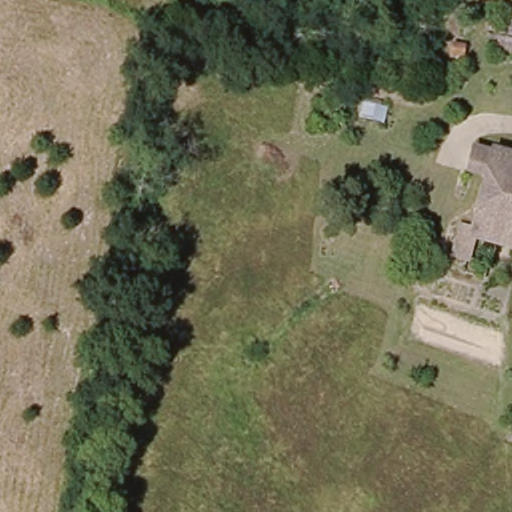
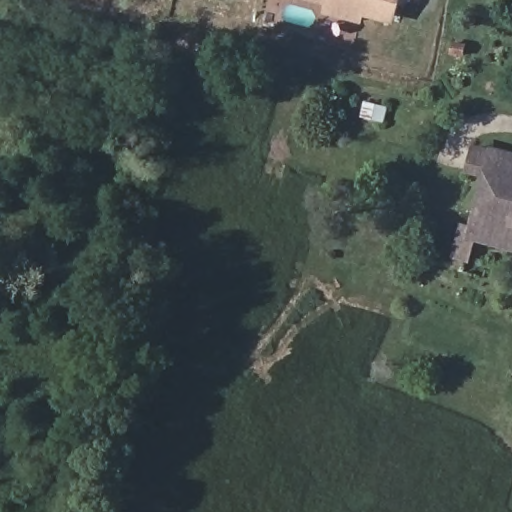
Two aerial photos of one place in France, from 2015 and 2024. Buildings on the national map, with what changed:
new [(361,23),(322,13),(324,4),(309,0),(399,0),(394,23),(363,15),(361,23)]
unchanged [(490,233),(485,240),(499,249),(493,274),(454,263),(464,221),(474,223),(481,194),(487,169),(469,164),(474,142),(493,147),(512,152),(512,239),(490,233)]

